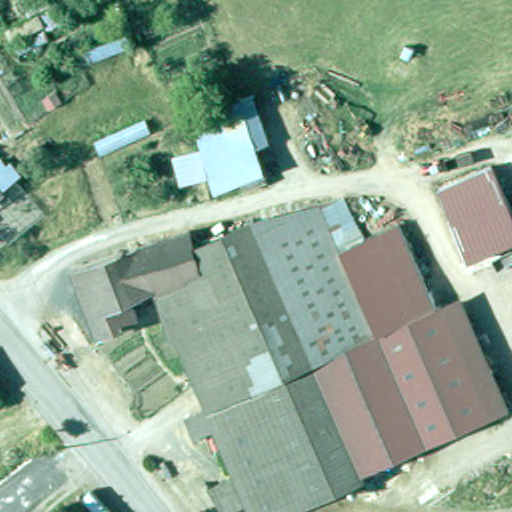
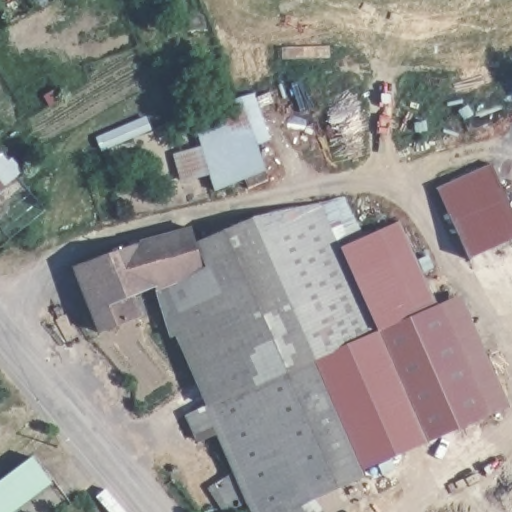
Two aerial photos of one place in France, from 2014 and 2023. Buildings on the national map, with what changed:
unchanged [(51,5),(58,18),(47,24),(40,10),(51,5)]
unchanged [(92,58),(87,50),(127,33),(132,42),(92,58)]
unchanged [(226,195),(205,121),(252,101),(273,174),(226,195)]
unchanged [(100,149),(96,137),(146,118),(150,130),(100,149)]
unchanged [(212,166),(215,178),(192,185),(185,158),(208,152),(212,166)]
unchanged [(2,160),(8,167),(12,164),(22,175),(18,178),(4,192),(0,195),(0,161),(2,160)]
unchanged [(512,205),(512,244),(470,263),(437,187),(492,162),(512,205)]
unchanged [(257,224),(346,203),(362,239),(399,322),(401,327),(385,333),(350,349),(318,362),(257,224)]
unchanged [(400,221),(435,304),(399,322),(362,239),(400,221)]
unchanged [(370,478),(295,512),(255,512),(252,507),(242,512),(226,512),(213,493),(239,476),(220,432),(201,440),(192,420),(213,411),(202,385),(182,339),(176,341),(170,323),(162,297),(188,290),(208,285),(202,249),(202,248),(257,224),(318,362),(368,474),(370,478)]
unchanged [(168,241),(196,233),(202,248),(202,249),(208,285),(188,290),(162,297),(160,291),(135,302),(143,322),(106,337),(80,270),(97,264),(145,247),(168,241)]
unchanged [(401,327),(399,322),(435,304),(462,294),(511,408),(449,434),(401,327)]
unchanged [(401,327),(450,438),(433,446),(368,474),(318,362),(350,349),(385,333),(401,327)]
new [(32,456),(52,483),(13,512),(0,512),(0,480),(32,456)]
new [(318,502),(326,512),(295,512),(318,502)]

